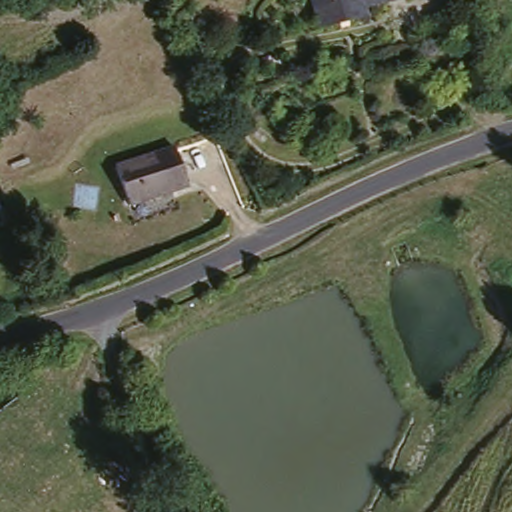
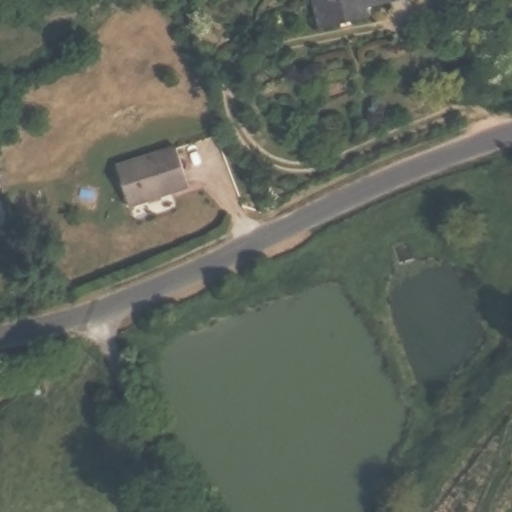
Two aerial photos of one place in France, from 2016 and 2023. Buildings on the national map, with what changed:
unchanged [(360,9),(362,17),(316,30),(306,0),(394,0),(360,9)]
unchanged [(186,192),(125,210),(115,171),(176,153),(186,192)]

